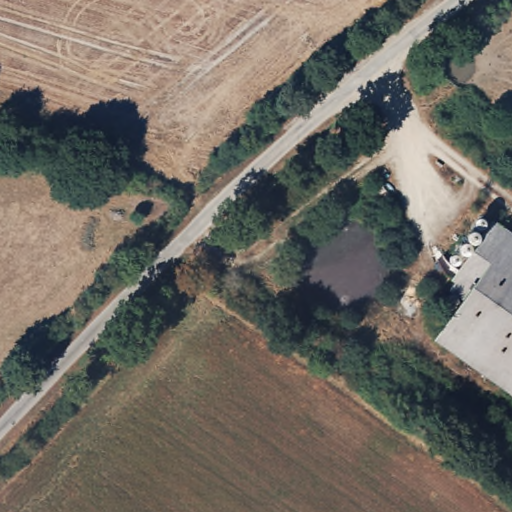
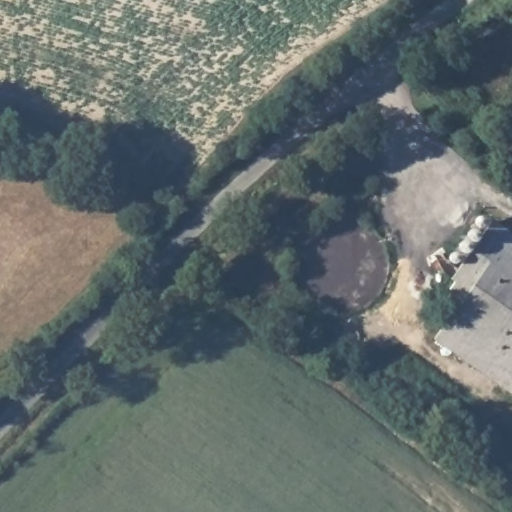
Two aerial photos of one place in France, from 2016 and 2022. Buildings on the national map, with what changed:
unchanged [(432,339),(456,306),(447,298),(450,293),(447,292),(453,283),(448,280),(492,224),(512,237),(512,396),(432,339)]

